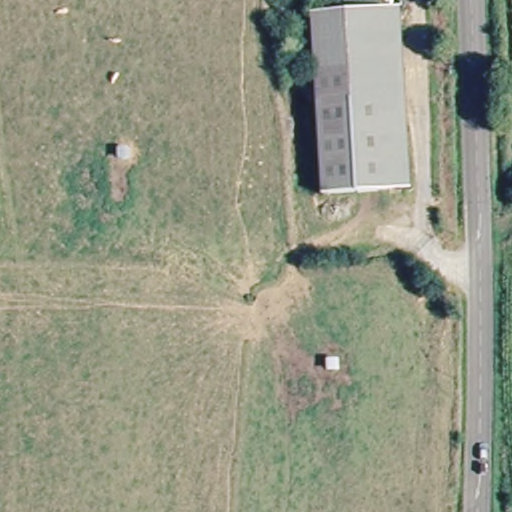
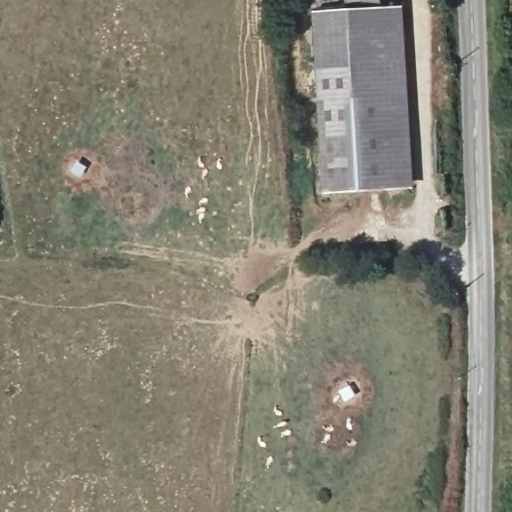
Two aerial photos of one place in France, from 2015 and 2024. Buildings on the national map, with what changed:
unchanged [(322,194),(314,14),(347,13),(346,0),(379,0),(379,11),(388,192),(322,194)]
unchanged [(401,10),(411,191),(388,192),(379,11),(401,10)]

